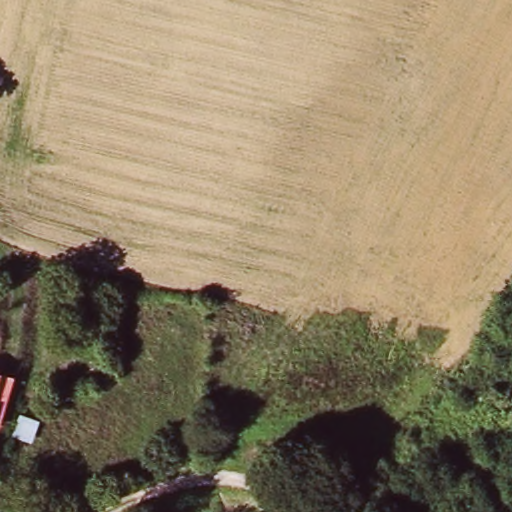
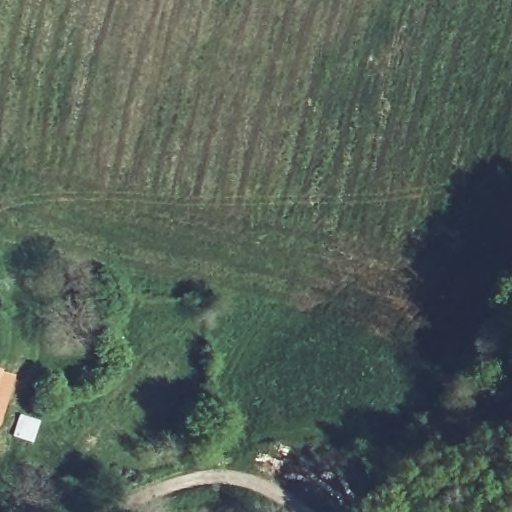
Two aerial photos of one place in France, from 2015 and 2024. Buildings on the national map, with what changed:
unchanged [(0,419),(0,377),(13,382),(0,419)]

